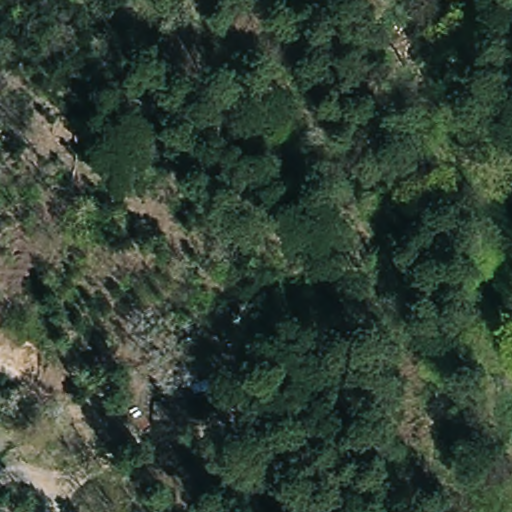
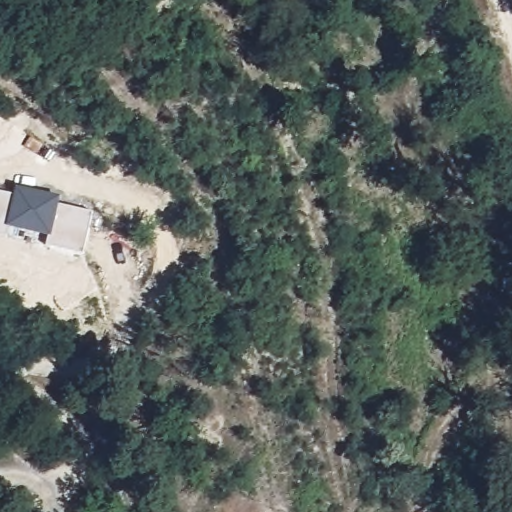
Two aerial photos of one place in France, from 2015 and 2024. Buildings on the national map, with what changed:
new [(15,195),(17,188),(59,197),(56,204),(93,213),(83,256),(0,237),(0,192),(15,195)]

